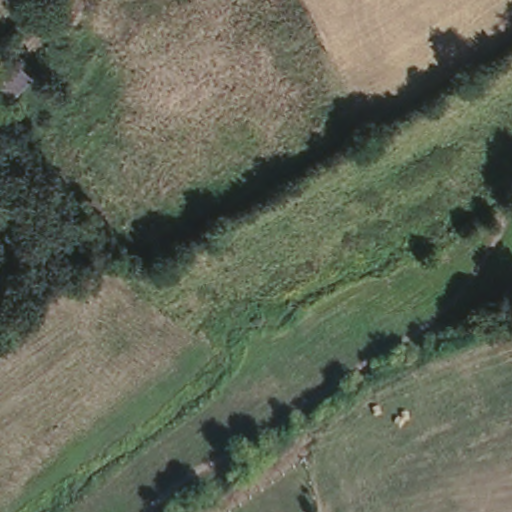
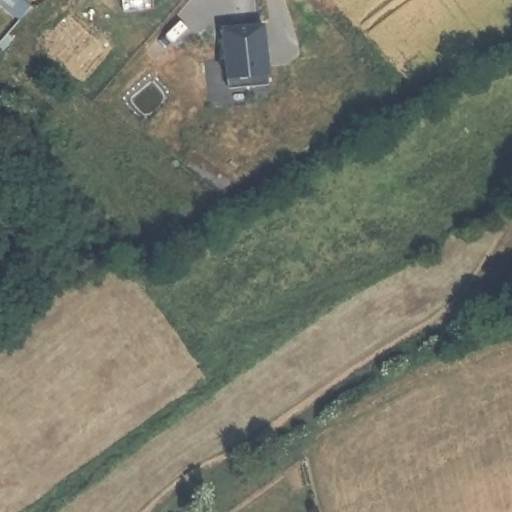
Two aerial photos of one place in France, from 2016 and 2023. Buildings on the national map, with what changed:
new [(21,19),(0,3),(0,0),(26,0),(32,4),(21,19)]
new [(265,18),(270,78),(230,82),(225,21),(265,18)]
unchanged [(26,74),(9,98),(0,91),(0,68),(6,60),(26,74)]

